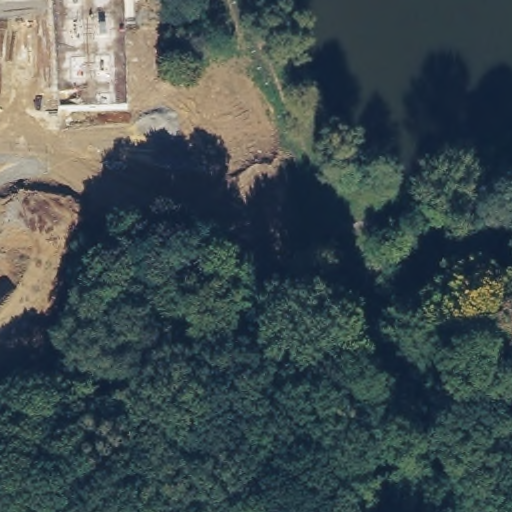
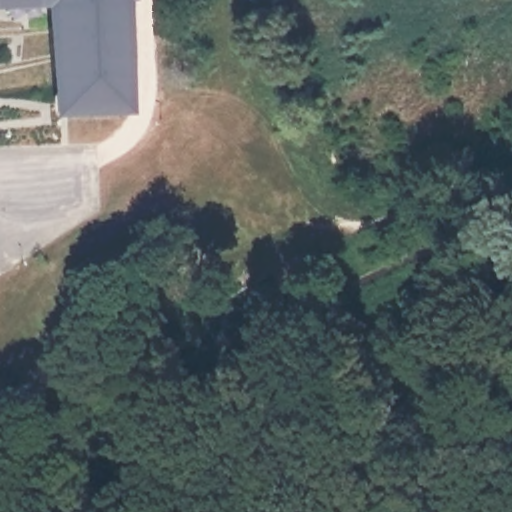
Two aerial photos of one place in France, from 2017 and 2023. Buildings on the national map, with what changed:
new [(47,6),(0,8),(0,0),(134,0),(128,0),(132,114),(55,115),(47,6)]

